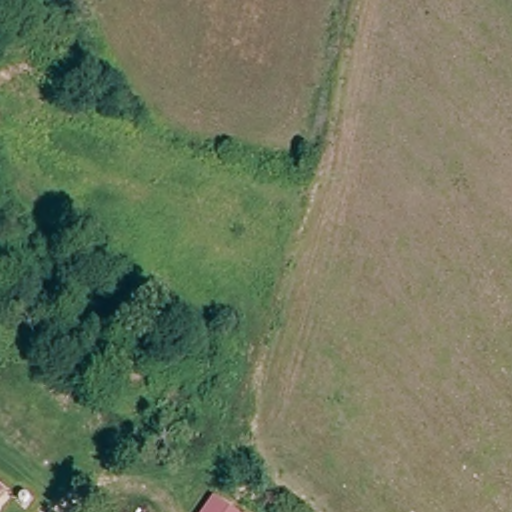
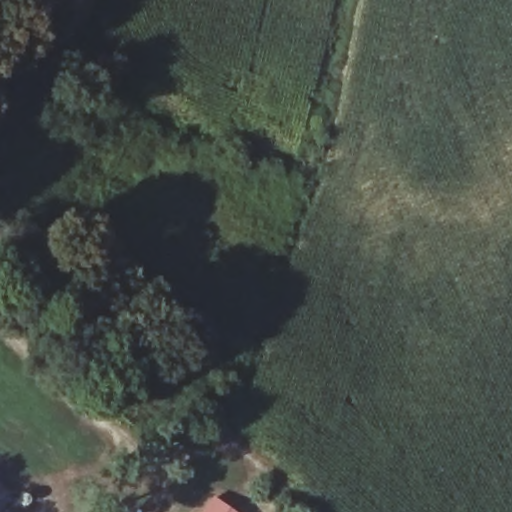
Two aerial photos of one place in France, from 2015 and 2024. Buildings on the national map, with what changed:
unchanged [(0,498),(0,494),(2,496),(0,498)]
unchanged [(240,512),(205,512),(217,496),(240,512)]

